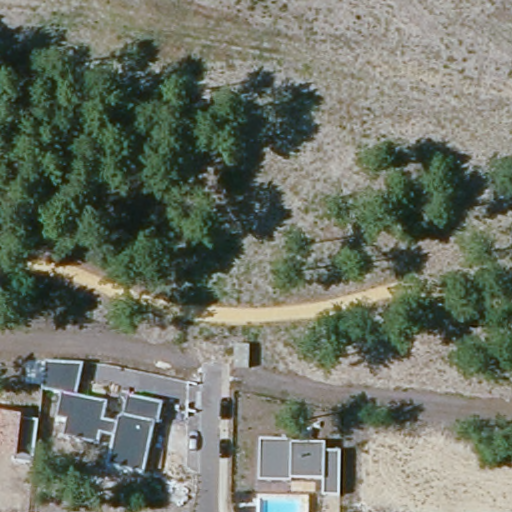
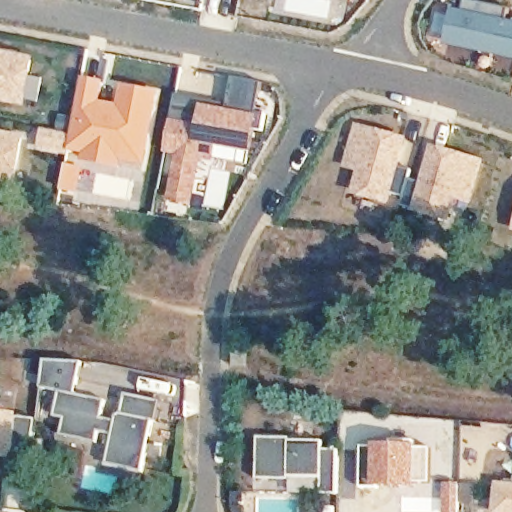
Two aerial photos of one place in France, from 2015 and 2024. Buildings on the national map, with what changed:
new [(456,10),(467,11),(469,1),(512,11),(509,23),(512,24),(512,60),(448,46),(456,10)]
new [(35,57),(26,107),(0,102),(0,50),(35,57)]
new [(55,130),(59,115),(72,117),(80,77),(104,82),(101,100),(114,102),(117,82),(157,91),(143,170),(78,160),(79,155),(65,152),(34,149),(38,127),(55,130)]
new [(206,101),(206,106),(229,110),(235,79),(264,84),(258,115),(266,115),(264,133),(257,132),(253,152),(219,147),(216,162),(203,160),(195,210),(168,205),(175,157),(166,155),(177,95),(206,101)]
new [(408,139),(401,168),(413,171),(410,181),(423,184),(433,146),(486,161),(474,206),(459,202),(453,226),(413,215),(415,207),(403,205),(405,195),(395,194),(392,207),(353,197),(360,174),(345,170),(357,126),(408,139)]
new [(26,135),(16,187),(0,184),(0,131),(26,135)]
new [(210,167),(231,172),(223,210),(202,206),(210,167)]
unchanged [(76,396),(106,403),(102,420),(117,423),(119,415),(125,416),(127,397),(164,405),(159,425),(154,423),(144,472),(109,465),(115,435),(101,431),(98,443),(63,437),(66,420),(58,418),(63,395),(44,390),(47,363),(83,363),(76,396)]
unchanged [(33,461),(16,460),(16,458),(0,457),(0,415),(24,417),(37,420),(33,461)]
new [(372,441),(401,442),(401,435),(425,435),(424,442),(441,442),(441,477),(424,476),(424,480),(388,480),(388,483),(371,483),(372,441)]
unchanged [(339,495),(324,493),(324,478),(290,475),(290,482),(259,481),(261,438),(292,440),(292,442),(325,444),(325,451),(340,450),(339,495)]
new [(512,480),(512,510),(505,509),(508,480),(512,480)]

